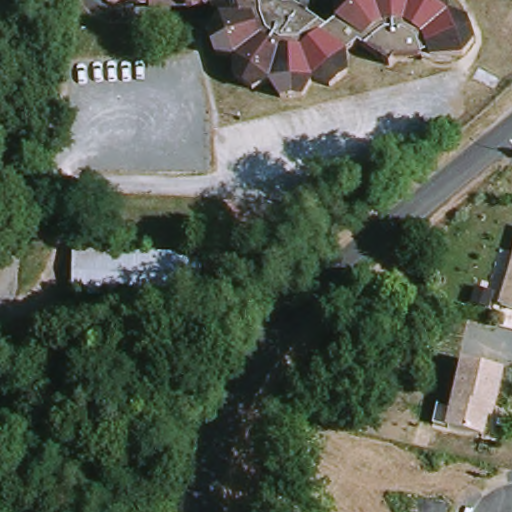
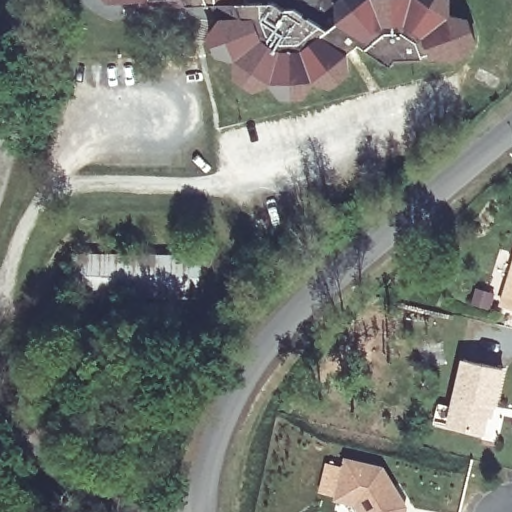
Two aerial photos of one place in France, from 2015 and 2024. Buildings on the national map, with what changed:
unchanged [(443,20),(468,20),(474,42),(460,59),(400,58),(396,68),(357,49),(344,53),(345,79),(327,89),(309,76),(300,97),(280,97),(272,76),(256,90),(237,78),(245,53),(222,49),(217,32),(226,20),(219,12),(184,10),(182,2),(132,0),(450,0),(443,20)]
unchanged [(199,256),(195,299),(71,293),(75,249),(199,256)]
unchanged [(512,284),(512,308),(505,306),(512,284)]
unchanged [(450,387),(463,391),(470,362),(509,371),(500,408),(495,407),(489,436),(455,428),(441,425),(450,387)]
new [(340,500),(350,462),(385,471),(396,489),(403,501),(408,509),(407,512),(364,512),(360,505),(340,500)]

